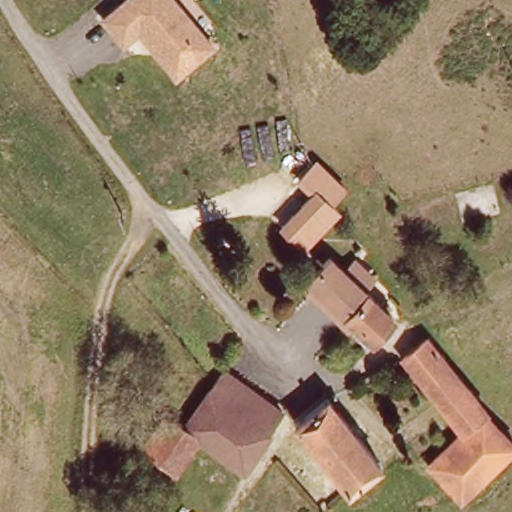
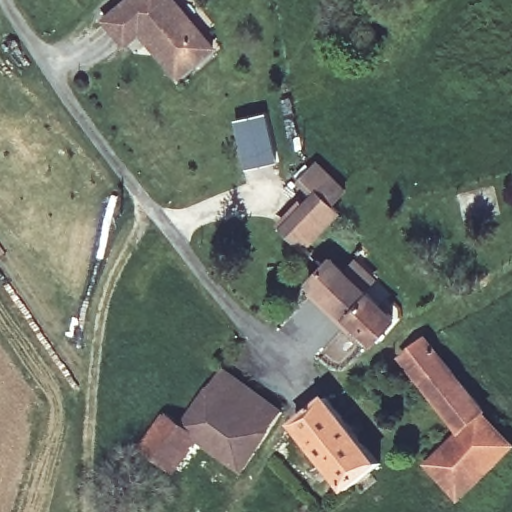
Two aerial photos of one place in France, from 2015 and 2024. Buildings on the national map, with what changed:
unchanged [(161,46),(157,41),(151,41),(141,29),(127,42),(105,18),(125,0),(177,0),(216,44),(180,75),(159,51),(161,46)]
new [(267,111),(276,159),(245,167),(235,119),(267,111)]
unchanged [(323,197),(316,189),(311,195),(297,181),(317,160),(347,188),(331,205),(323,197)]
unchanged [(337,211),(303,247),(285,230),(280,226),(316,189),(323,197),(337,211)]
unchanged [(341,268),(353,254),(370,269),(357,282),(379,303),(384,297),(388,301),(383,308),(390,315),(370,337),(302,278),(323,254),(341,268)]
unchanged [(481,405),(477,410),(512,437),(512,443),(461,497),(425,462),(459,429),(397,357),(422,334),(481,405)]
unchanged [(181,424),(222,368),(280,412),(263,433),(242,467),(197,436),(181,424)]
unchanged [(300,428),(332,401),(382,463),(351,489),(300,428)]
unchanged [(181,424),(197,436),(172,470),(171,469),(142,448),(166,413),(181,424)]

